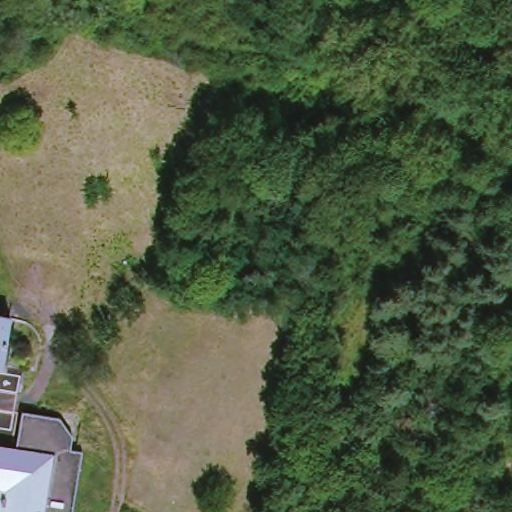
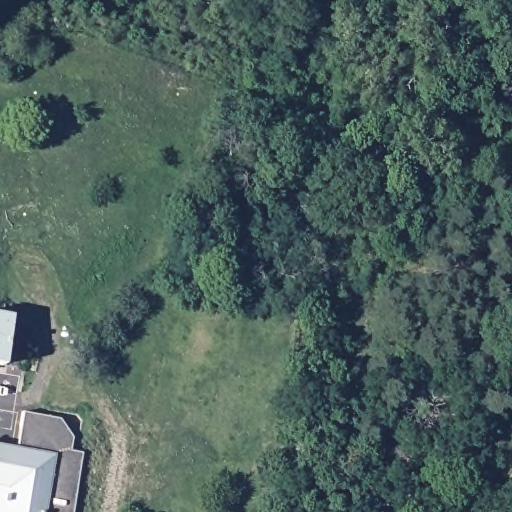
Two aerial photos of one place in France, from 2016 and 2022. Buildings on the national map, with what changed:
unchanged [(13,316),(5,365),(0,364),(0,314),(13,316)]
unchanged [(32,446),(36,416),(66,421),(53,506),(77,510),(76,512),(0,512),(0,441),(32,446)]

